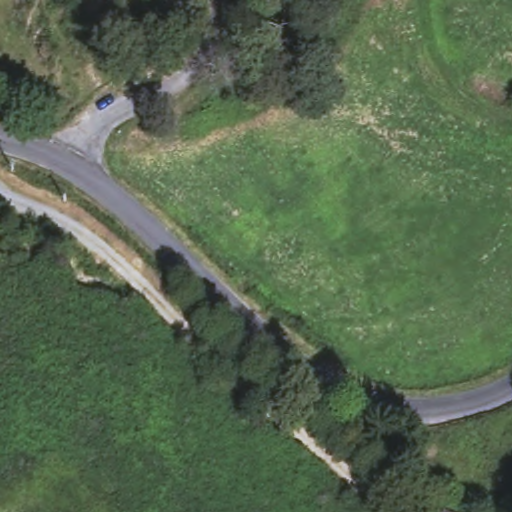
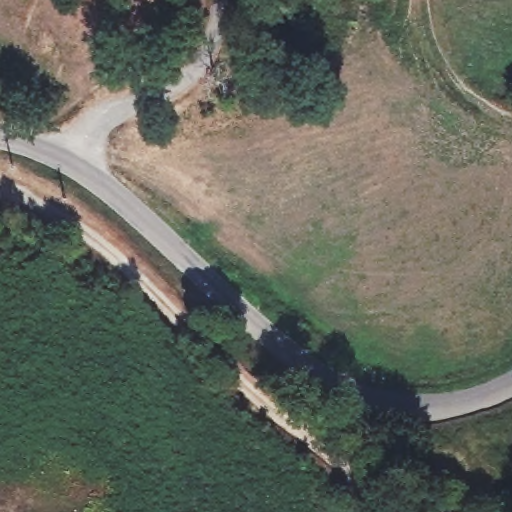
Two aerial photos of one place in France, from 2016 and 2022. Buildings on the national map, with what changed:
unchanged [(441,507),(455,512),(439,512),(441,507)]

